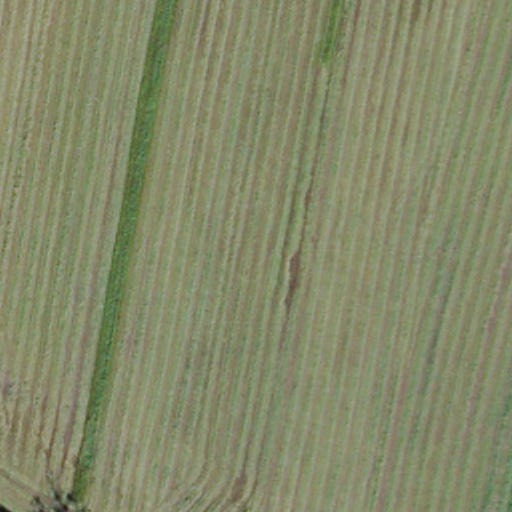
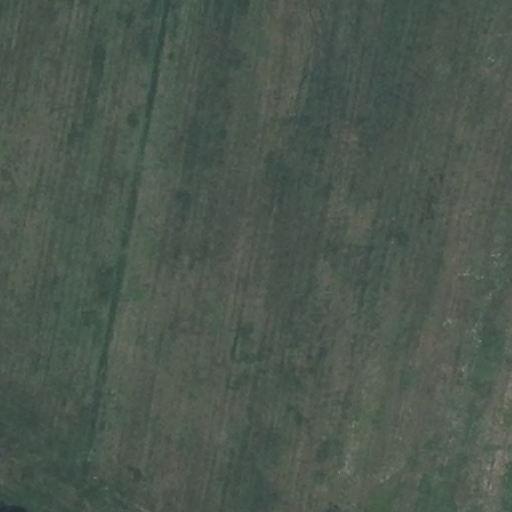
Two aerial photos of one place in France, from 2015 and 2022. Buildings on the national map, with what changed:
[]

